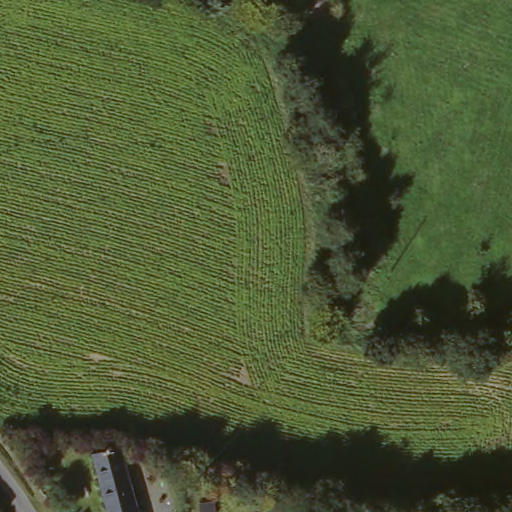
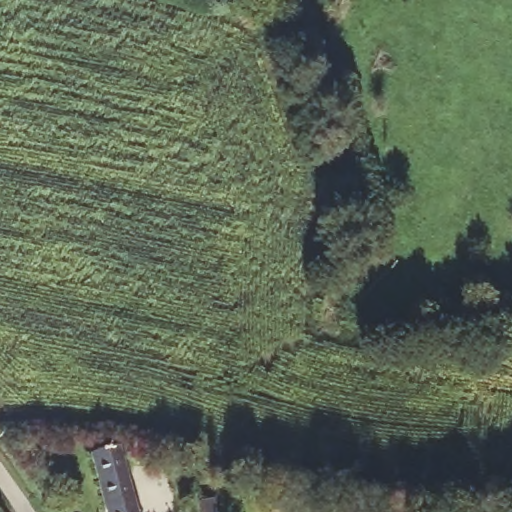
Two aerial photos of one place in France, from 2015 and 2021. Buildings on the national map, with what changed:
unchanged [(134,512),(106,512),(90,451),(116,445),(134,512)]

